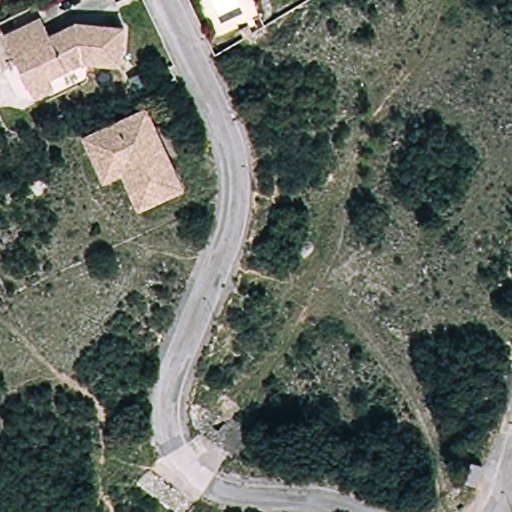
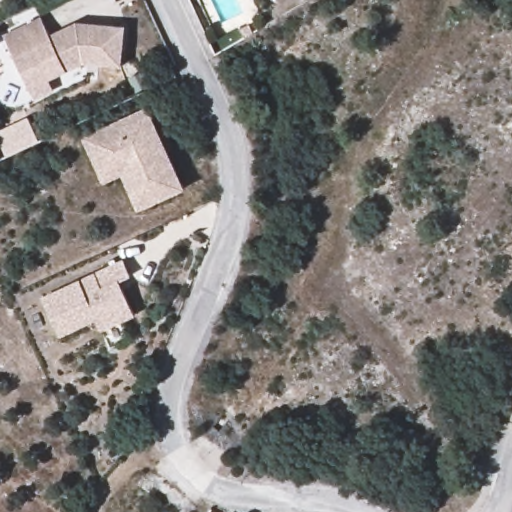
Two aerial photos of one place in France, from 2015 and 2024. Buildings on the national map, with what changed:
unchanged [(35,95),(30,85),(5,32),(43,14),(52,32),(77,20),(125,25),(120,64),(85,59),(50,76),(55,86),(35,95)]
unchanged [(147,109),(185,188),(146,206),(125,161),(111,168),(95,134),(147,109)]
unchanged [(111,168),(125,161),(146,206),(140,210),(122,174),(104,183),(83,139),(95,134),(111,168)]
new [(80,280),(122,260),(130,276),(120,281),(136,317),(101,332),(95,320),(59,338),(42,299),(80,280)]
unchanged [(482,469),(477,488),(465,485),(470,466),(482,469)]

